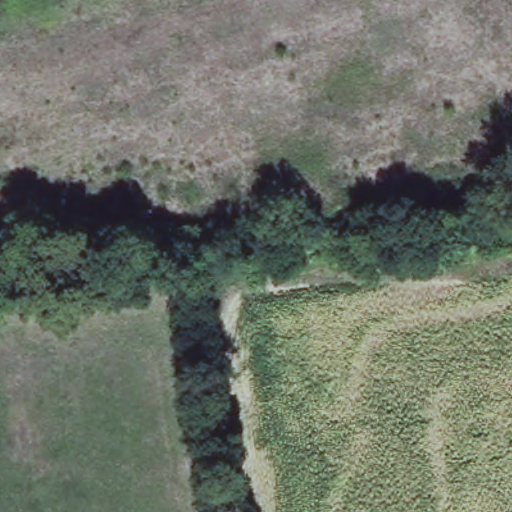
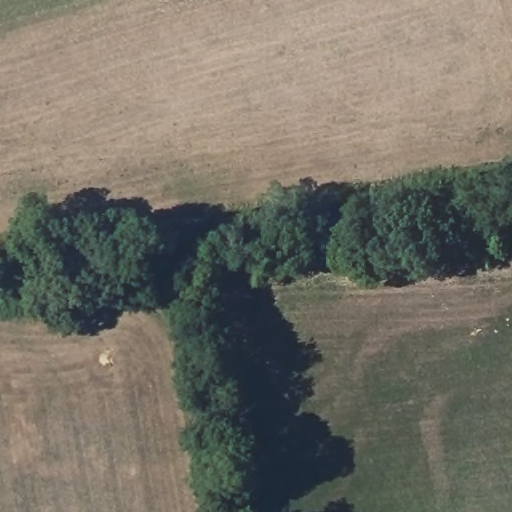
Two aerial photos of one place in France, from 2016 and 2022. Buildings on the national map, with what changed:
[]

